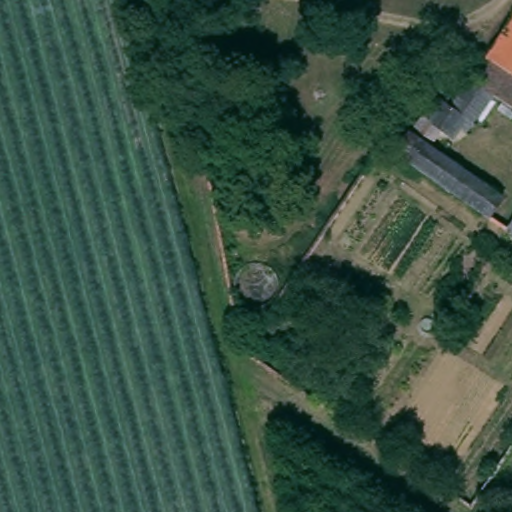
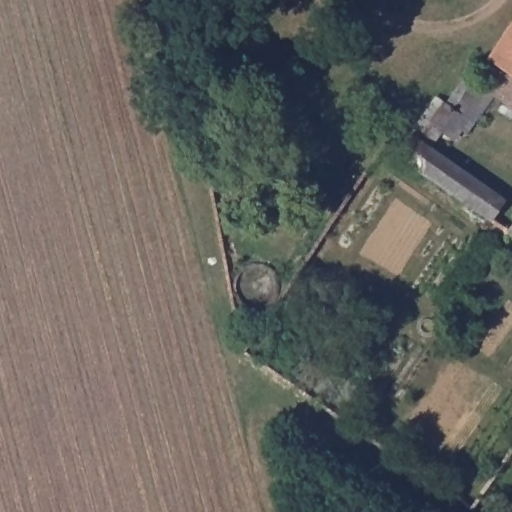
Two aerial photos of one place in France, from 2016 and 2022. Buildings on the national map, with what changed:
unchanged [(443,104),(462,76),(475,85),(490,63),(486,60),(512,22),(512,78),(510,76),(495,98),(488,93),(453,143),(442,135),(431,151),(503,199),(488,223),(484,220),(393,156),(433,98),(443,104)]
unchanged [(512,78),(512,110),(495,98),(510,76),(512,78)]
unchanged [(512,231),(512,239),(508,237),(512,231)]

